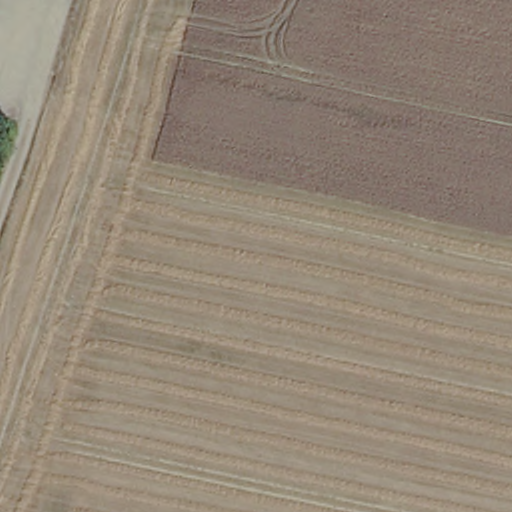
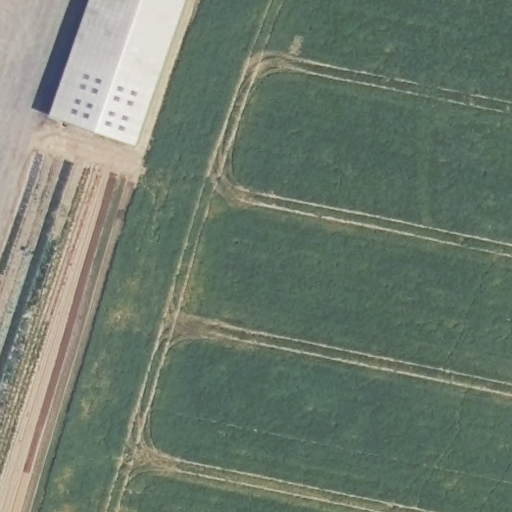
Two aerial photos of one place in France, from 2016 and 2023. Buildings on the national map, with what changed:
new [(97,0),(195,0),(144,158),(56,124),(58,122),(97,0)]

